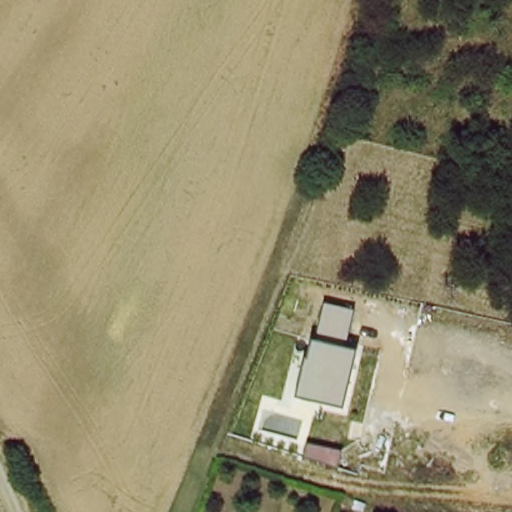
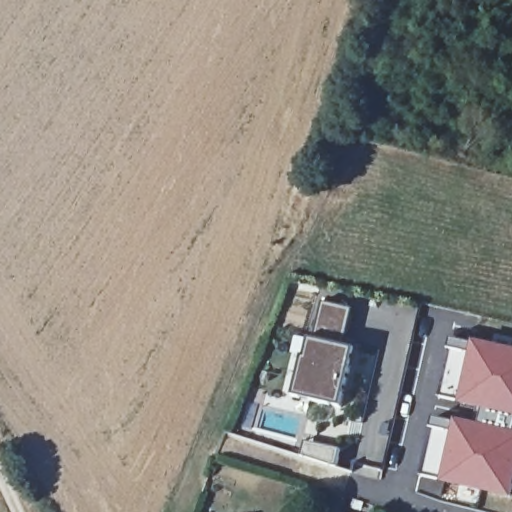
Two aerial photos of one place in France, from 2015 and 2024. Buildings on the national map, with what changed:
unchanged [(295,398),(303,359),(307,360),(312,341),(316,342),(325,305),(352,311),(344,348),(357,351),(343,408),(295,398)]
new [(450,336),(471,340),(456,404),(435,399),(450,336)]
new [(477,422),(480,410),(456,404),(471,340),(512,348),(512,498),(511,500),(417,478),(432,414),(477,422)]
new [(315,459),(300,454),(305,438),(321,443),(340,449),(335,465),(315,459)]
unchanged [(341,511),(343,512),(341,512),(341,511)]

